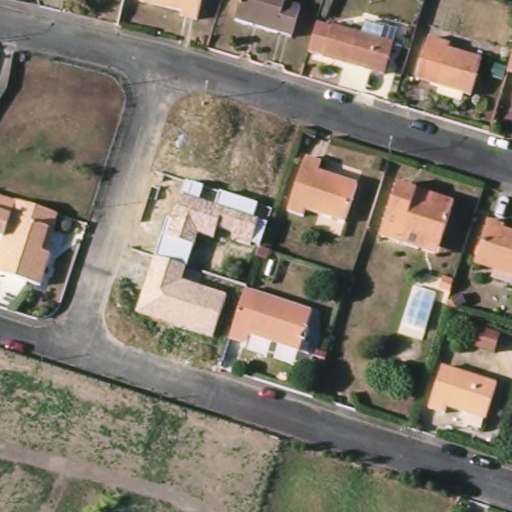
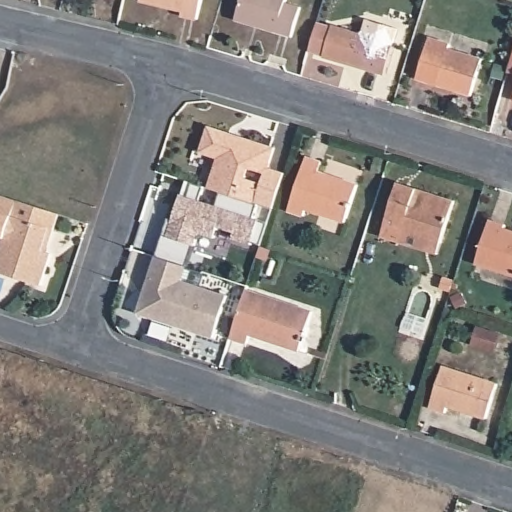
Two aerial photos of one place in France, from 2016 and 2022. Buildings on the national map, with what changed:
unchanged [(180,16),(182,11),(140,2),(141,0),(203,0),(198,20),(180,16)]
unchanged [(307,0),(295,38),(240,22),(247,0),(307,0)]
unchanged [(321,24),(349,31),(352,19),(387,29),(399,33),(396,46),(386,77),(325,59),(312,55),(321,24)]
unchanged [(434,43),(453,48),(452,53),(484,64),(474,99),(422,84),(434,43)]
unchanged [(511,79),(512,73),(512,79),(511,79)]
new [(274,148),(269,169),(284,173),(273,209),(257,205),(219,193),(209,187),(218,158),(200,153),(209,128),(274,148)]
unchanged [(323,163),(320,170),(359,183),(347,222),(307,209),(304,217),(289,212),(307,158),(323,163)]
unchanged [(136,314),(168,222),(170,223),(178,195),(181,196),(187,182),(205,187),(202,202),(215,205),(219,193),(257,205),(273,209),(268,225),(262,247),(231,238),(233,234),(215,228),(214,239),(199,236),(183,283),(226,297),(213,339),(136,314)]
unchanged [(404,241),(385,235),(401,185),(458,203),(446,242),(442,254),(404,241)]
unchanged [(50,229),(44,252),(53,254),(44,286),(0,274),(0,258),(5,240),(0,239),(0,197),(59,214),(54,230),(50,229)]
unchanged [(512,236),(512,277),(481,267),(492,229),(512,236)]
unchanged [(313,312),(300,352),(249,337),(248,343),(233,339),(248,291),(313,312)]
unchanged [(491,419),(449,406),(448,413),(432,407),(444,368),(502,386),(491,419)]

